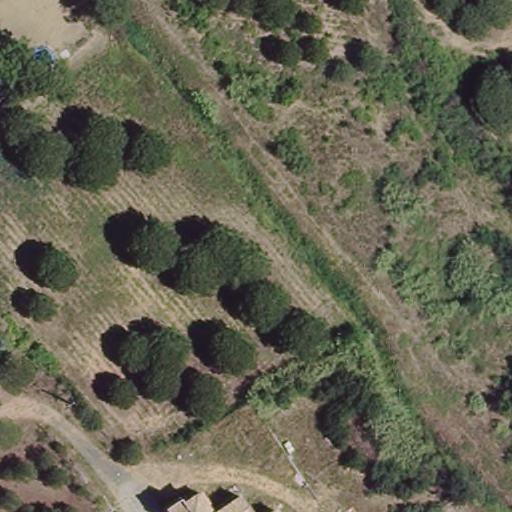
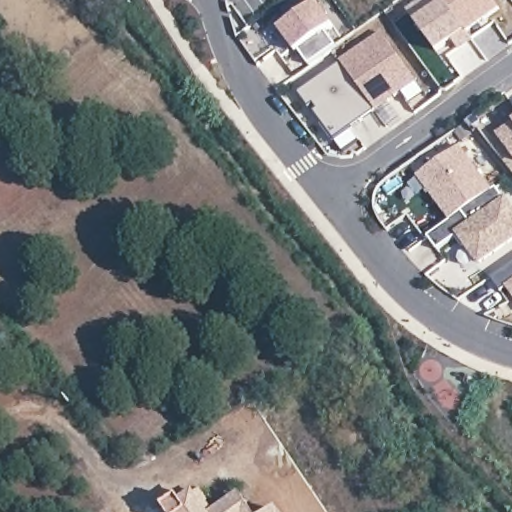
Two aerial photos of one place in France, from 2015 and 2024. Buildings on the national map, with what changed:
new [(444,0),(468,32),(473,40),(459,50),(453,41),(437,52),(409,13),(427,0),(444,0)]
new [(468,32),(444,0),(494,0),(500,9),(468,32)]
new [(317,2),(334,25),(326,31),(337,46),(310,65),(299,51),(297,52),(280,29),(317,2)]
new [(376,110),(340,61),(381,32),(417,80),(395,97),(390,100),(376,110)]
new [(335,140),(314,111),(317,109),(314,104),(309,107),(298,92),(340,61),(376,110),(361,121),(353,127),(335,140)]
new [(499,135),(512,125),(512,153),(499,135)]
new [(459,145),(492,190),(451,220),(418,175),(459,145)]
new [(438,250),(428,237),(451,220),(492,190),(496,187),(512,210),(512,238),(480,262),(467,245),(463,249),(455,237),(438,250)]
new [(507,287),(501,291),(491,277),(512,262),(512,294),(507,287)]
unchanged [(158,502),(171,492),(179,497),(183,496),(186,498),(200,490),(214,512),(165,512),(158,502)]
unchanged [(245,492),(258,512),(214,512),(245,492)]
unchanged [(284,505),(288,512),(274,512),(284,505)]

